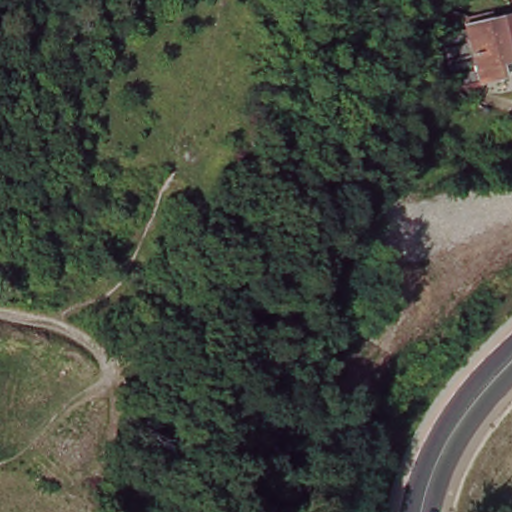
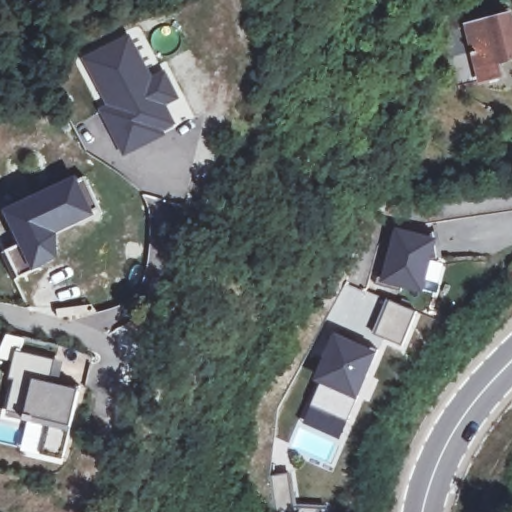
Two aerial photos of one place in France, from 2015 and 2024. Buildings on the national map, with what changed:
unchanged [(484,83),(459,87),(448,32),(460,11),(470,12),(471,19),(484,83)]
unchanged [(471,19),(512,12),(512,69),(509,69),(510,79),(484,83),(471,19)]
new [(124,157),(100,111),(107,108),(83,58),(131,35),(152,79),(167,72),(180,100),(167,106),(176,125),(164,131),(166,136),(124,157)]
new [(22,245),(5,211),(77,177),(79,181),(85,178),(100,209),(94,212),(95,216),(57,234),(59,259),(34,270),(15,280),(3,254),(22,245)]
new [(382,276),(394,229),(419,234),(430,232),(432,239),(437,240),(435,248),(438,259),(432,262),(423,295),(400,289),(400,293),(374,285),(376,275),(382,276)]
new [(402,346),(376,334),(390,302),(417,313),(402,346)]
new [(321,383),(313,380),(334,333),(378,353),(359,400),(341,439),(303,423),(321,383)]
new [(26,339),(22,352),(57,359),(53,379),(82,386),(65,459),(42,454),(50,422),(35,418),(34,422),(25,420),(27,416),(8,412),(15,381),(10,379),(15,362),(0,358),(0,355),(9,335),(26,339)]
new [(326,512),(276,512),(272,476),(289,474),(293,507),(326,508),(326,512)]

